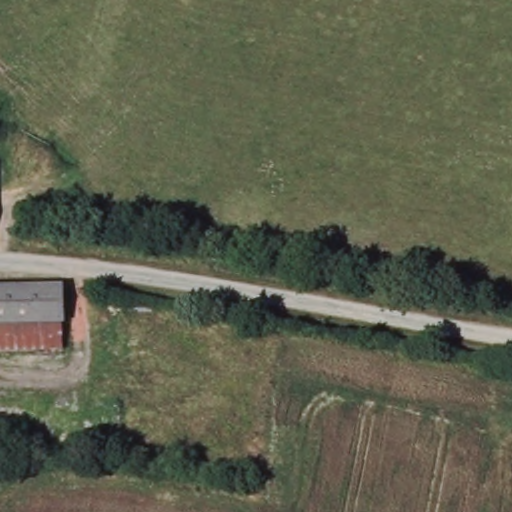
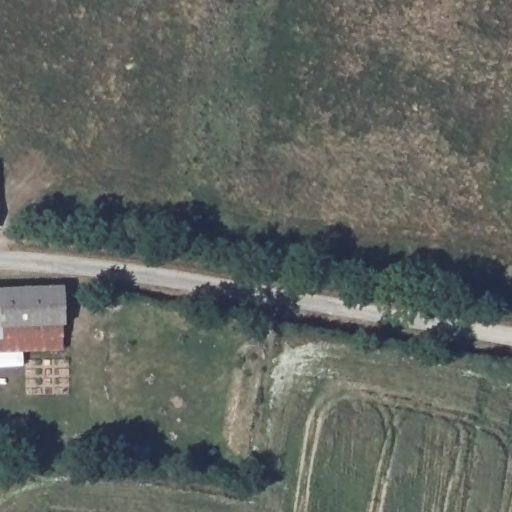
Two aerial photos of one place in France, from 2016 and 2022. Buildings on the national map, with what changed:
unchanged [(20,319),(22,348),(0,348),(0,282),(59,278),(65,279),(65,283),(66,318),(20,319)]
unchanged [(20,319),(66,318),(68,346),(22,348),(20,319)]

